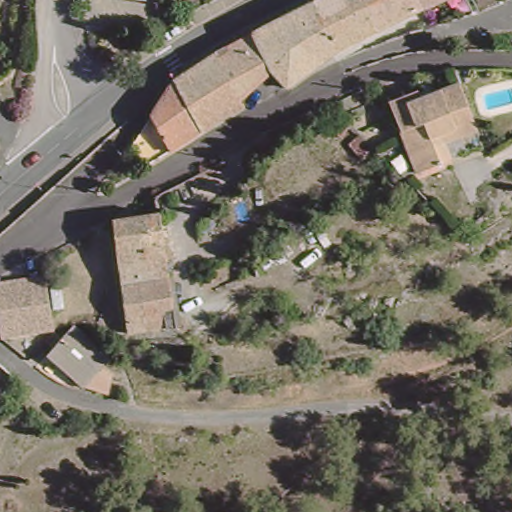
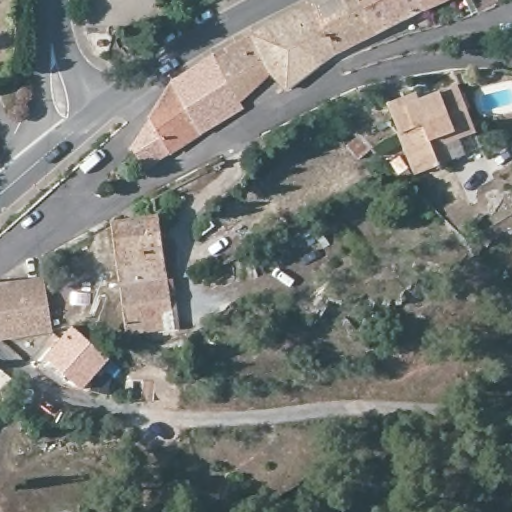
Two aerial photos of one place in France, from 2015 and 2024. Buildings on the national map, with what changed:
unchanged [(310,6),(321,0),(356,0),(372,34),(338,51),(333,54),(310,6)]
unchanged [(424,8),(372,34),(356,0),(420,0),(424,8)]
unchanged [(424,8),(420,0),(440,0),(424,8)]
unchanged [(478,11),(472,0),(502,0),(478,11)]
unchanged [(254,35),(310,6),(333,54),(283,90),(271,68),(254,35)]
unchanged [(271,68),(237,96),(215,55),(254,35),(271,68)]
unchanged [(215,55),(237,96),(242,106),(170,154),(148,119),(177,75),(215,55)]
unchanged [(446,159),(435,164),(411,173),(384,110),(381,103),(410,90),(414,99),(450,84),(466,120),(470,129),(440,141),(446,159)]
unchanged [(341,132),(330,120),(341,109),(352,121),(341,132)]
unchanged [(365,155),(351,141),(361,130),(376,145),(365,155)]
unchanged [(105,222),(156,215),(166,277),(116,284),(105,222)]
unchanged [(170,306),(162,307),(163,316),(175,316),(177,326),(171,326),(124,332),(116,284),(166,277),(170,306)]
unchanged [(0,344),(0,340),(0,287),(48,279),(54,334),(0,344)]
unchanged [(101,354),(105,360),(99,367),(110,376),(104,401),(83,392),(42,359),(67,331),(71,327),(75,330),(101,354)]

